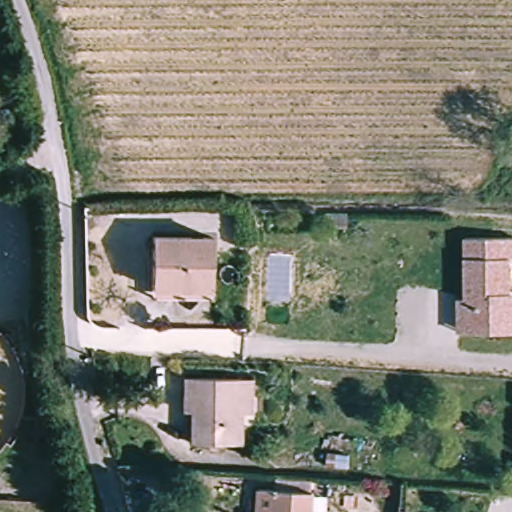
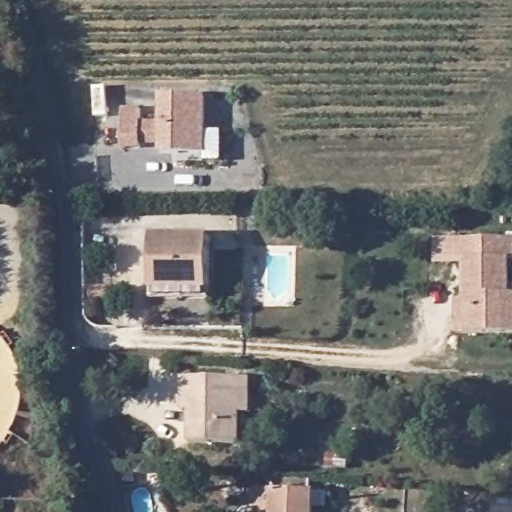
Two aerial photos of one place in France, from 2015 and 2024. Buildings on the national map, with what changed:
new [(112,147),(112,108),(131,109),(131,122),(151,122),(152,94),(195,95),(193,153),(150,152),(150,147),(130,147),(112,147)]
unchanged [(151,285),(152,232),(209,234),(209,286),(209,296),(151,296),(151,285)]
unchanged [(458,298),(465,298),(465,238),(512,238),(512,259),(508,259),(509,295),(512,295),(512,333),(504,333),(465,333),(458,333),(458,298)]
unchanged [(246,380),(257,381),(255,416),(244,415),(242,446),(193,443),(193,416),(179,416),(180,389),(180,377),(246,380)]
unchanged [(270,492),(277,492),(316,496),(315,512),(268,512),(270,492)]

